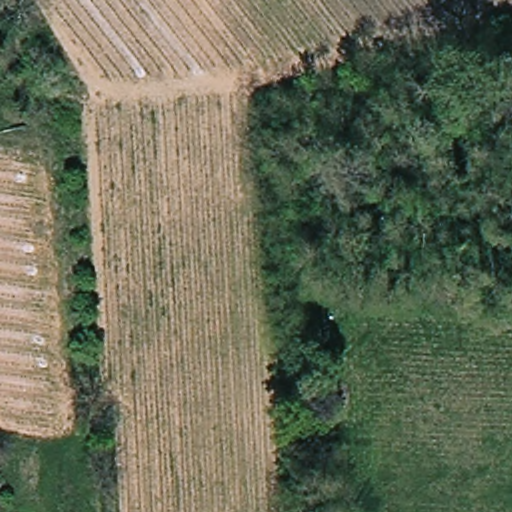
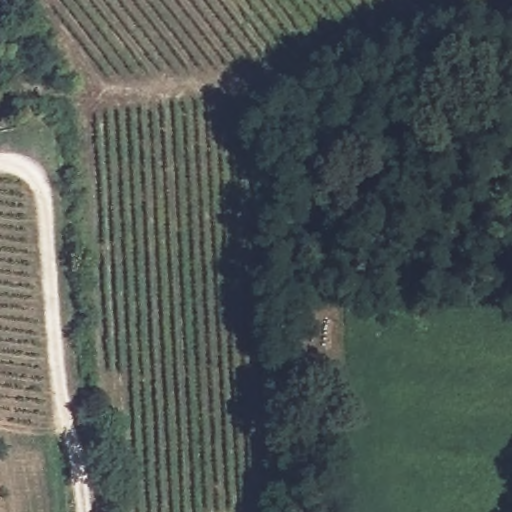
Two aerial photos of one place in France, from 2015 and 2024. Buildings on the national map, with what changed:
[]

